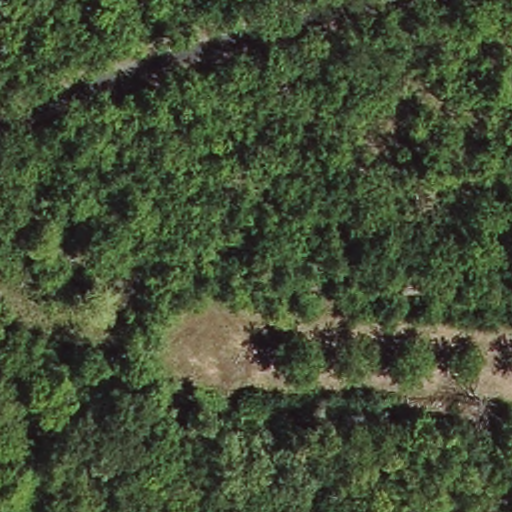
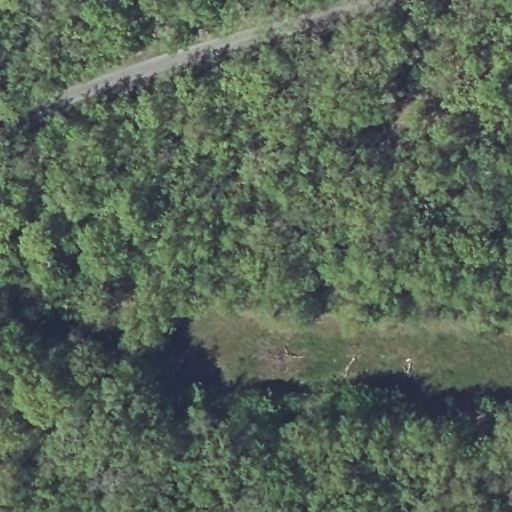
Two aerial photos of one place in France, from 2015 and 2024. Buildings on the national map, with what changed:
[]

